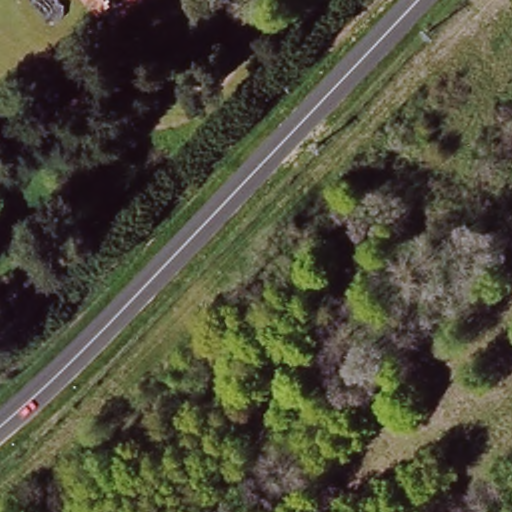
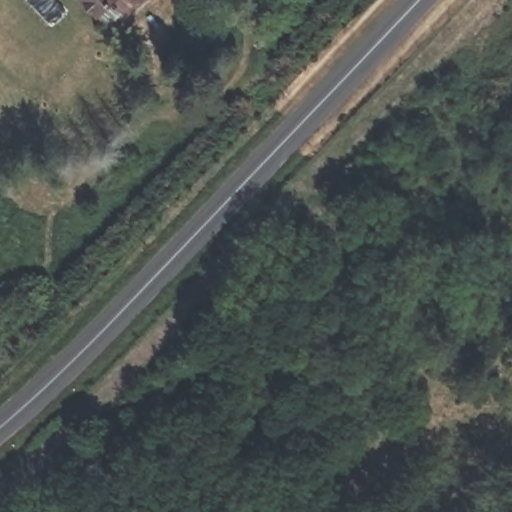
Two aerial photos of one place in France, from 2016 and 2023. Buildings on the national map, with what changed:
unchanged [(97,6),(93,10),(84,0),(136,0),(112,21),(97,6)]

